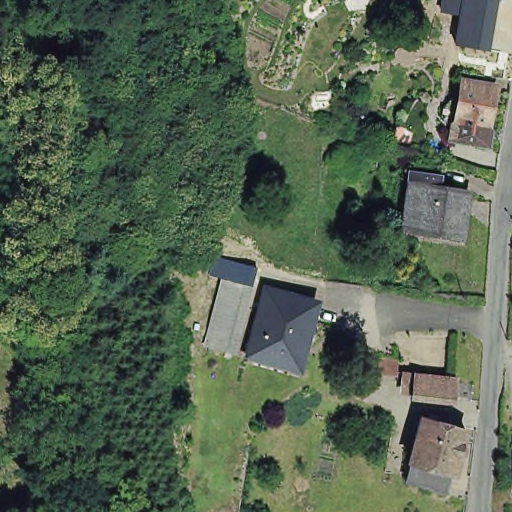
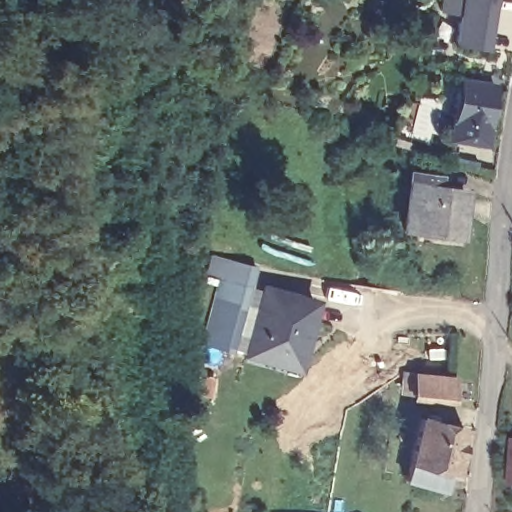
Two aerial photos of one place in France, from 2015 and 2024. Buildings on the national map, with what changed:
unchanged [(489,51),(453,45),(458,15),(438,12),(440,0),(498,0),(489,51)]
unchanged [(459,117),(460,117),(466,81),(499,87),(492,124),(494,124),(491,143),(456,137),(459,117)]
unchanged [(444,159),(429,152),(436,135),(450,140),(444,159)]
unchanged [(444,185),(443,199),(474,203),(470,239),(427,235),(427,241),(414,240),(420,182),(444,185)]
unchanged [(224,259),(252,264),(233,349),(206,343),(224,259)]
unchanged [(271,292),(319,305),(303,369),(254,356),(271,292)]
unchanged [(413,393),(414,391),(406,390),(407,371),(416,372),(455,376),(453,396),(413,393)]
unchanged [(459,379),(472,381),(471,397),(458,396),(459,379)]
unchanged [(409,487),(414,470),(426,426),(431,427),(433,422),(442,424),(442,431),(469,438),(458,481),(454,480),(449,497),(409,487)]
unchanged [(512,489),(509,488),(508,438),(512,438),(512,489)]

